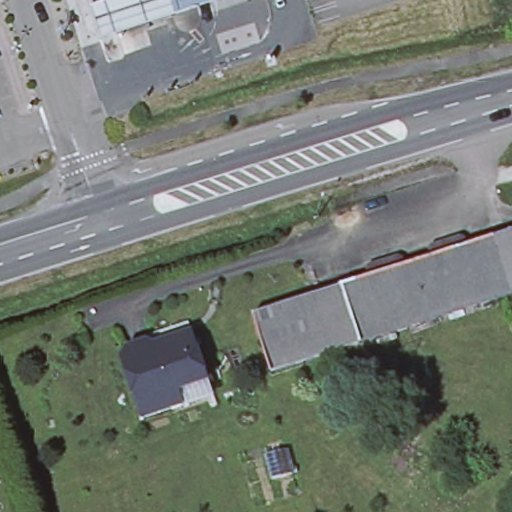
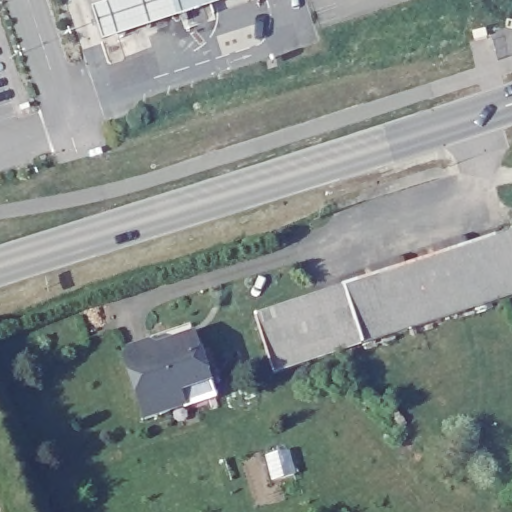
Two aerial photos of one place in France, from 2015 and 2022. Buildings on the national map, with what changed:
unchanged [(92,9),(120,0),(234,0),(103,42),(92,9)]
unchanged [(512,236),(512,289),(495,238),(511,233),(512,236)]
unchanged [(512,289),(512,297),(274,375),(255,317),(344,287),(495,238),(512,289)]
unchanged [(207,390),(209,397),(171,411),(145,420),(125,361),(130,352),(142,347),(149,345),(152,338),(190,326),(194,337),(210,382),(212,388),(207,390)]

